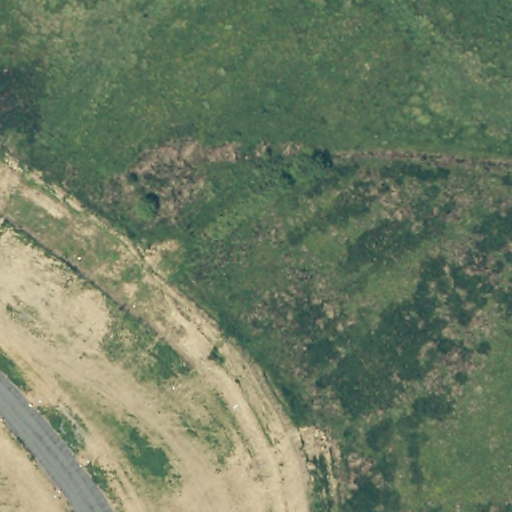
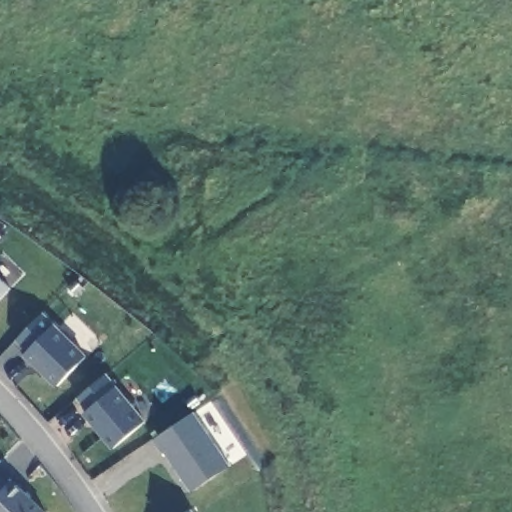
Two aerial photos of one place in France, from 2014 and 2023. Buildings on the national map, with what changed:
unchanged [(0,276),(12,287),(0,299),(0,276)]
new [(56,386),(23,354),(26,350),(15,340),(43,313),(86,355),(56,386)]
new [(88,410),(77,397),(107,373),(117,385),(145,420),(111,447),(84,413),(88,410)]
new [(166,453),(162,456),(152,439),(194,411),(230,464),(190,490),(166,453)]
unchanged [(13,478),(48,512),(0,512),(0,476),(8,483),(13,478)]
new [(193,512),(184,512),(191,508),(193,512)]

